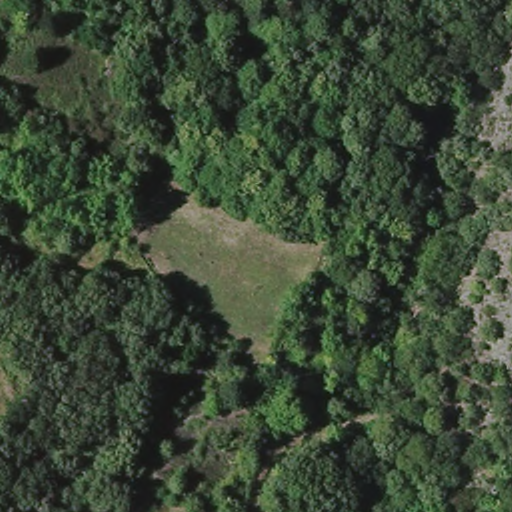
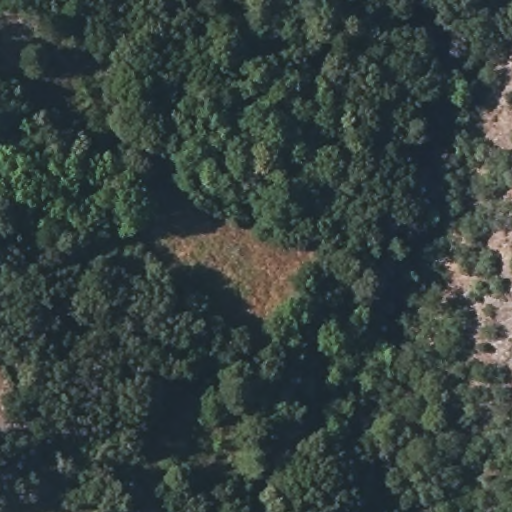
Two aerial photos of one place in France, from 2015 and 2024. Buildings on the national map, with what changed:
unchanged [(356,48),(369,49),(367,62),(355,60),(356,48)]

